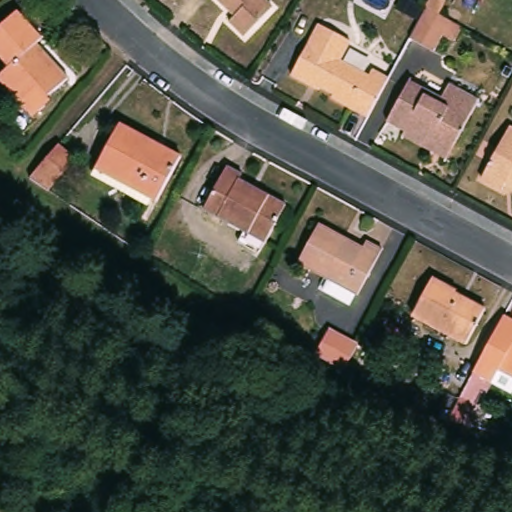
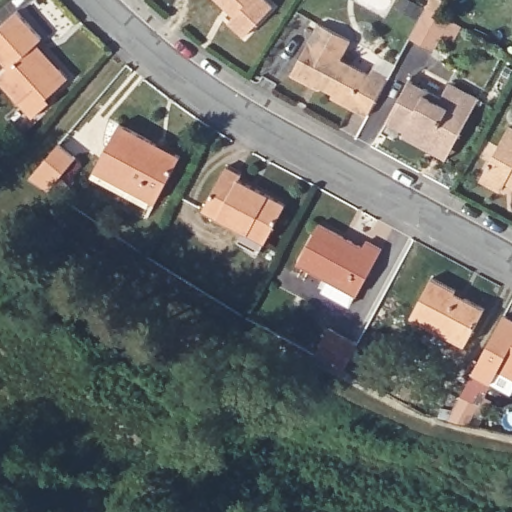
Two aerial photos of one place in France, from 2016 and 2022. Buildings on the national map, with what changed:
unchanged [(225,22),(230,16),(213,0),(260,0),(267,7),(240,37),(225,22)]
unchanged [(450,26),(462,32),(453,46),(442,40),(433,56),(410,42),(426,12),(433,0),(450,0),(447,6),(440,20),(451,25),(450,26)]
unchanged [(401,2),(417,11),(412,22),(396,13),(401,2)]
unchanged [(15,101),(0,85),(0,71),(5,67),(0,62),(0,22),(12,11),(37,39),(32,44),(55,69),(64,78),(42,97),(46,101),(29,117),(15,101)]
unchanged [(327,97),(328,95),(322,92),(319,94),(286,76),(313,25),(345,42),(335,61),(363,76),(367,70),(383,78),(362,117),(327,97)]
unchanged [(399,136),(402,132),(382,122),(404,81),(423,91),(421,95),(434,102),(437,97),(444,83),(474,99),(450,144),(442,159),(399,136)]
unchanged [(87,171),(91,164),(115,119),(176,151),(152,197),(149,204),(87,171)]
unchanged [(497,190),(476,179),(503,127),(512,132),(512,187),(502,181),(497,190)]
unchanged [(62,141),(79,155),(48,191),(47,191),(30,179),(62,141)]
unchanged [(261,243),(199,210),(222,167),(237,175),(235,180),(282,205),(261,243)]
unchanged [(357,295),(298,262),(320,224),(363,248),(367,242),(382,250),(357,295)]
unchanged [(452,291),(448,296),(458,301),(461,297),(480,308),(461,344),(407,315),(427,277),(452,291)]
unchanged [(497,370),(488,386),(468,374),(499,313),(512,320),(512,343),(497,370)]
unchanged [(357,343),(343,372),(340,370),(315,356),(328,328),(357,343)]
unchanged [(497,370),(512,343),(512,377),(497,370)]
unchanged [(476,407),(466,425),(448,420),(460,398),(476,407)]

